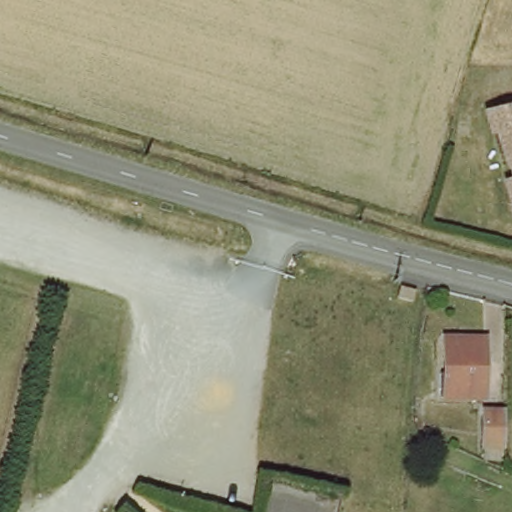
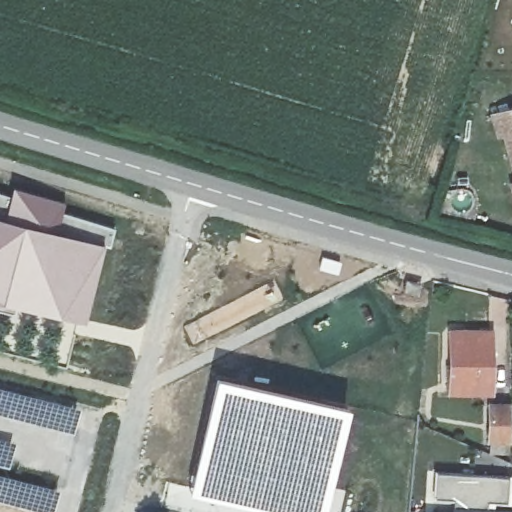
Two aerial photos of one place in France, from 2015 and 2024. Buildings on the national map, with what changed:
unchanged [(499,136),(493,114),(512,108),(512,157),(505,134),(499,136)]
new [(15,199),(17,189),(70,203),(67,215),(119,229),(115,250),(110,250),(92,327),(20,311),(17,317),(0,313),(0,194),(15,199)]
unchanged [(491,333),(491,392),(452,392),(453,333),(491,333)]
new [(346,404),(322,512),(283,512),(188,490),(213,373),(346,404)]
unchanged [(424,391),(423,416),(413,416),(416,390),(424,391)]
unchanged [(496,410),(512,410),(512,446),(495,446),(496,410)]
new [(512,512),(453,512),(453,505),(455,505),(456,497),(437,497),(439,470),(512,474),(512,512)]

